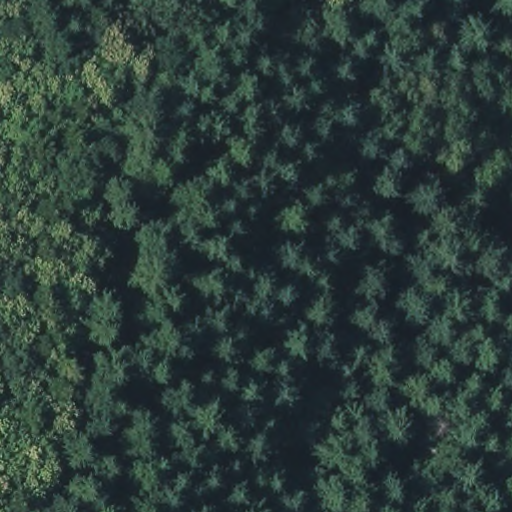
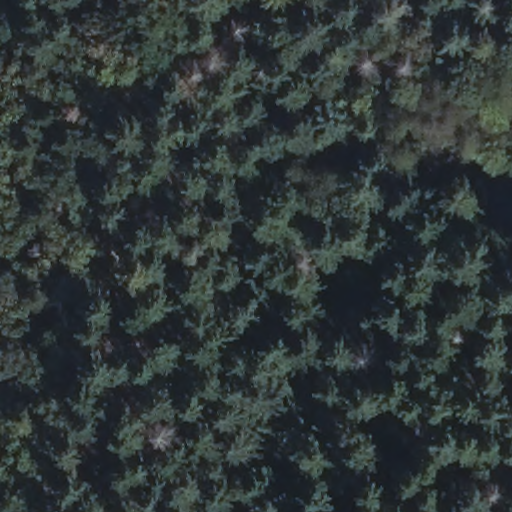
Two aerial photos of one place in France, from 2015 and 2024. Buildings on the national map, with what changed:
[]

